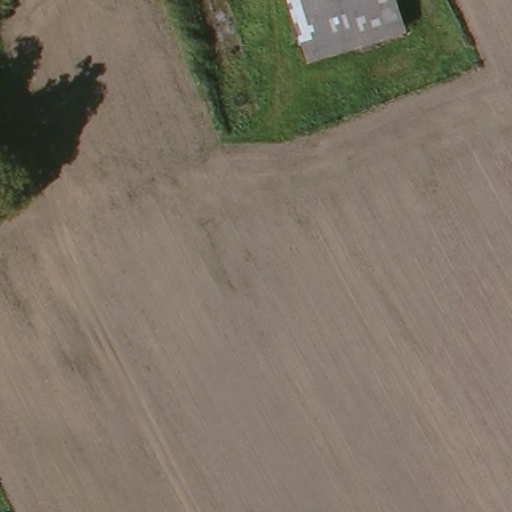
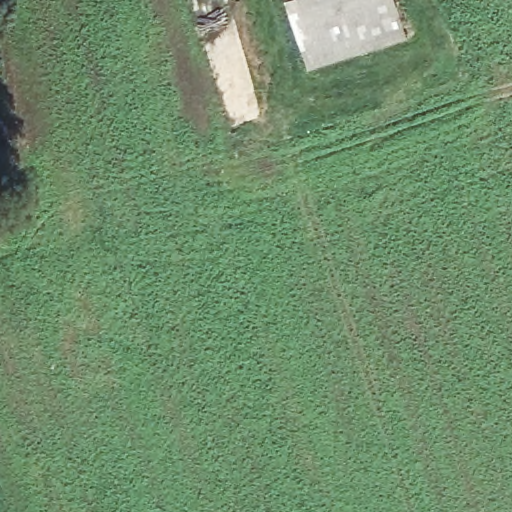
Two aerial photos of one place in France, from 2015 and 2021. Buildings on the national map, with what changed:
unchanged [(308,65),(286,0),(391,0),(403,34),(308,65)]

